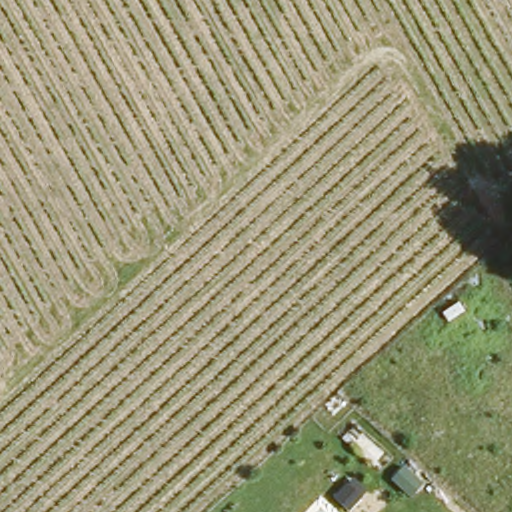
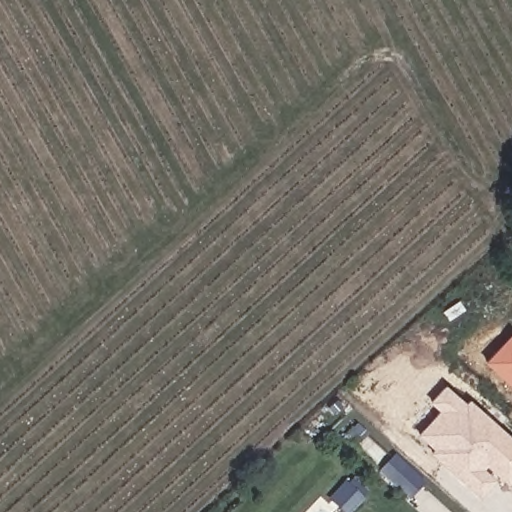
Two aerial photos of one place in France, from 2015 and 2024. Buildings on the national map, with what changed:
new [(512,333),(512,389),(484,363),(512,333)]
new [(428,402),(444,385),(466,403),(469,399),(512,438),(512,478),(506,485),(486,465),(483,469),(495,480),(479,498),(430,453),(433,449),(417,435),(439,411),(428,402)]
new [(410,500),(378,471),(394,454),(425,482),(410,500)]
new [(349,512),(342,512),(328,499),(345,481),(363,498),(349,512)]

